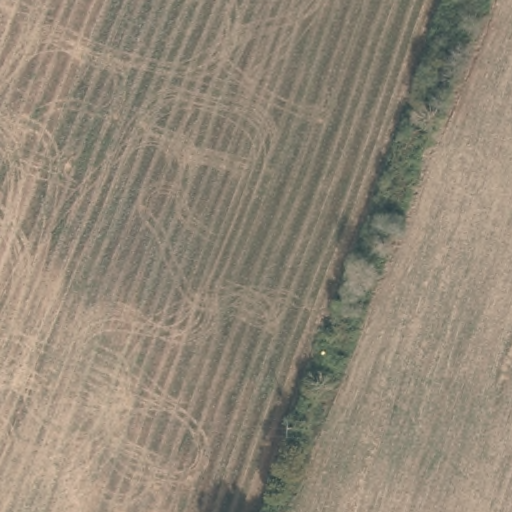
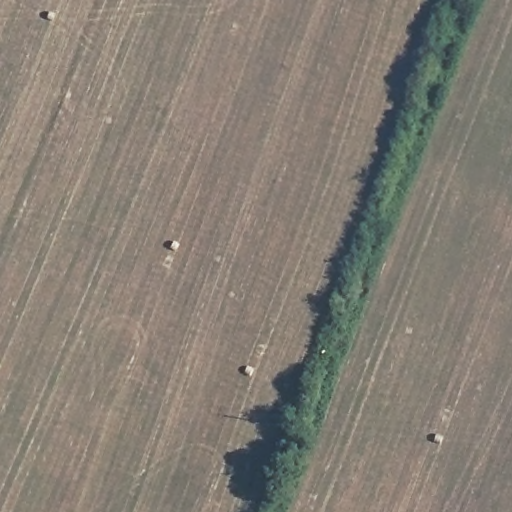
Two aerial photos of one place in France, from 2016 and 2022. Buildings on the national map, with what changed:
[]

